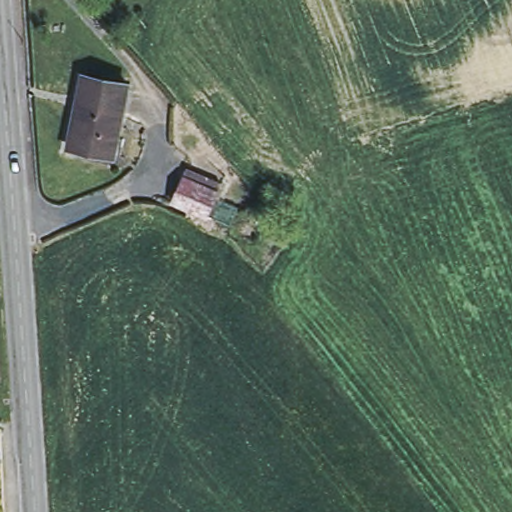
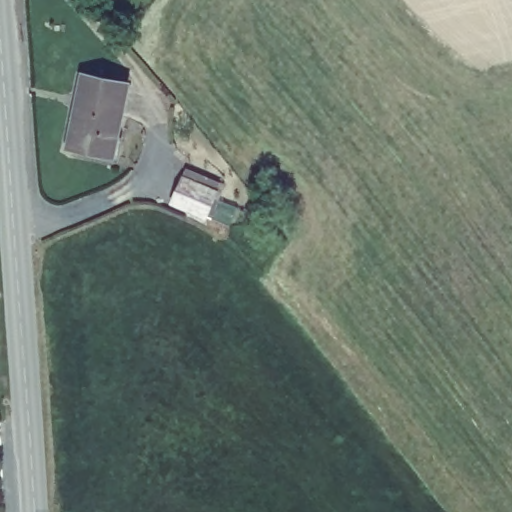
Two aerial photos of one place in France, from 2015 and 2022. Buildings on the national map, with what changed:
unchanged [(128,85),(113,156),(70,147),(85,76),(128,85)]
unchanged [(184,177),(217,191),(206,216),(174,202),(183,181),(184,177)]

